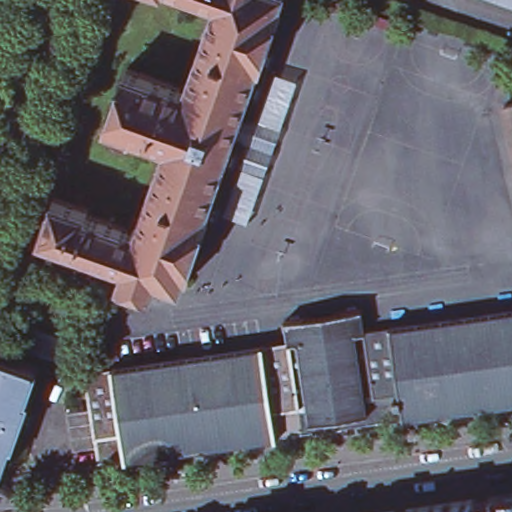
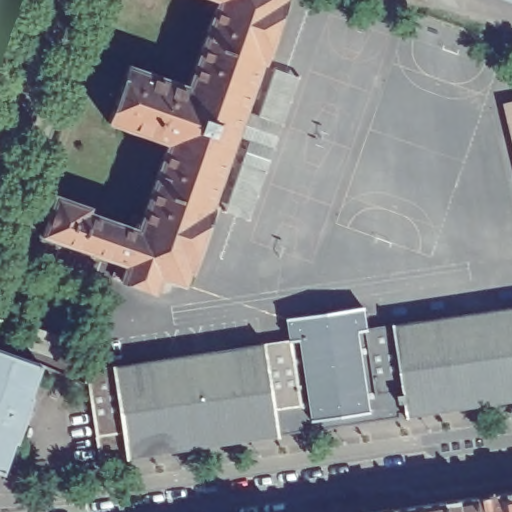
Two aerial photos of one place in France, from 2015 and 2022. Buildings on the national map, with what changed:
unchanged [(213,211),(191,275),(188,274),(183,288),(166,282),(161,298),(153,295),(153,293),(120,282),(119,285),(113,282),(118,267),(41,242),(56,195),(93,207),(90,212),(131,226),(134,216),(143,218),(168,142),(110,122),(130,65),(189,84),(215,11),(206,9),(209,0),(283,0),(283,1),(286,1),(263,67),(260,66),(243,115),(234,140),(209,210),(213,211)]
unchanged [(505,105),(512,103),(512,133),(505,105)]
unchanged [(281,128),(274,152),(234,140),(243,115),(281,128)]
unchanged [(293,344),(289,322),(368,310),(371,333),(395,329),(408,420),(281,439),(268,348),(293,344)]
unchanged [(395,329),(394,329),(512,310),(512,404),(408,420),(395,329)]
unchanged [(59,364),(45,360),(31,355),(16,351),(22,330),(37,335),(52,339),(65,343),(80,348),(74,368),(59,364)]
unchanged [(116,372),(116,371),(268,348),(281,439),(129,462),(116,372)]
unchanged [(31,399),(15,443),(13,442),(1,475),(0,474),(0,353),(38,366),(28,398),(31,399)]
unchanged [(129,462),(103,466),(91,387),(90,376),(116,372),(129,462)]
unchanged [(512,493),(512,512),(475,512),(473,499),(512,493)]
unchanged [(441,504),(473,499),(475,512),(389,512),(441,504)]

